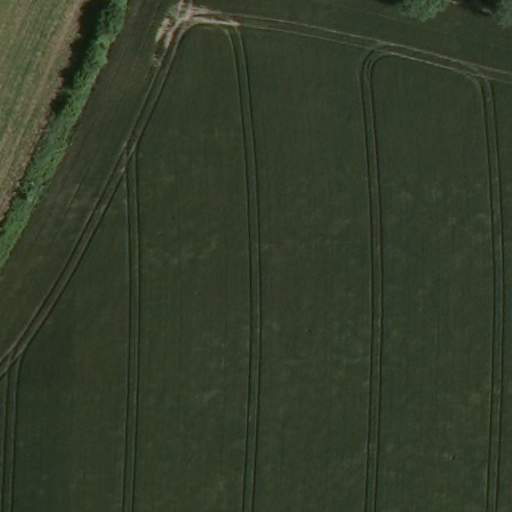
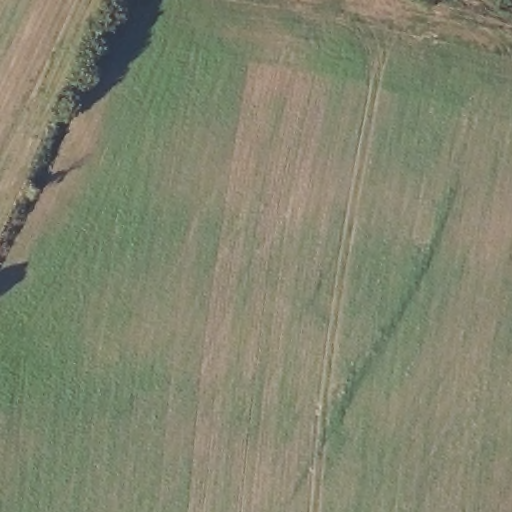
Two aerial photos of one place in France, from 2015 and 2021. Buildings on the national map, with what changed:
[]

